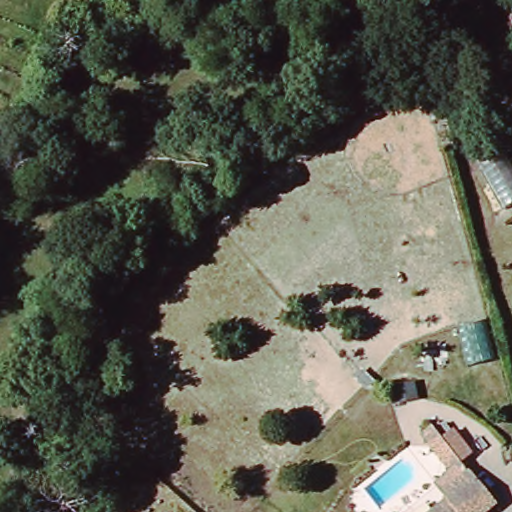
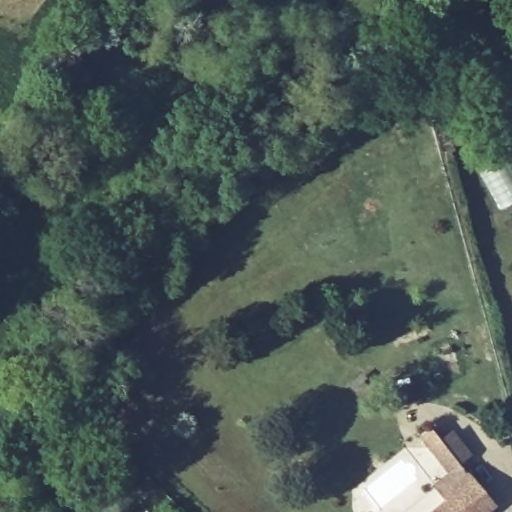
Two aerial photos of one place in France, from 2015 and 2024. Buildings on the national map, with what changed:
unchanged [(462,146),(485,130),(512,175),(512,201),(500,208),(462,146)]
unchanged [(438,495),(451,482),(422,445),(433,436),(472,485),(448,506),(438,495)]
unchanged [(472,485),(494,511),(492,512),(445,512),(450,507),(448,506),(472,485)]

